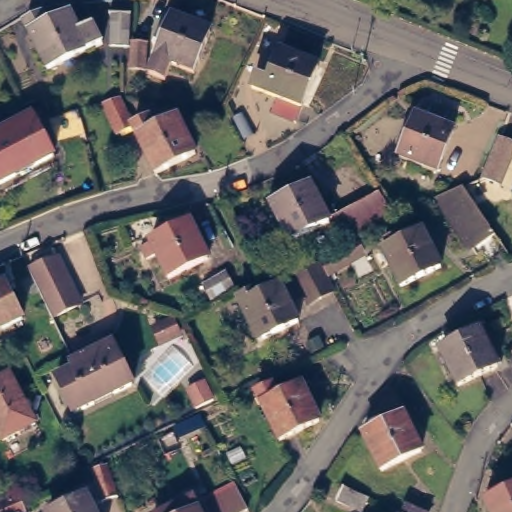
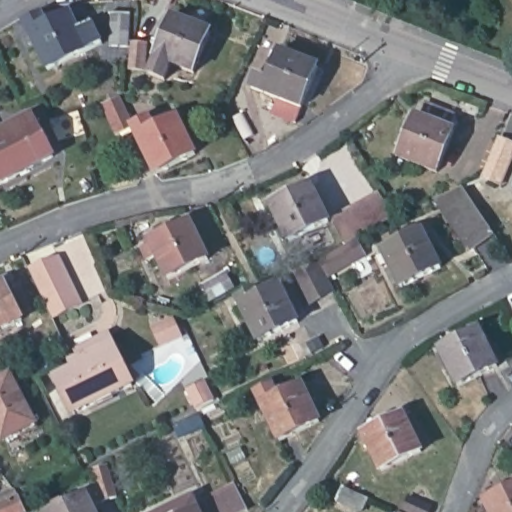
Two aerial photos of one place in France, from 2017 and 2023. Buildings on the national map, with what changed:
unchanged [(32,8),(37,17),(70,2),(77,18),(91,11),(101,30),(46,57),(25,12),(32,8)]
unchanged [(122,43),(102,41),(105,11),(125,12),(122,43)]
unchanged [(212,34),(197,71),(175,62),(167,81),(152,74),(162,52),(155,49),(170,16),(212,34)]
unchanged [(321,58),(298,114),(275,105),(280,91),(253,81),(257,70),(264,72),(277,41),(321,58)]
unchanged [(138,43),(136,67),(123,65),(125,42),(138,43)]
unchanged [(147,117),(163,109),(165,114),(189,102),(210,148),(172,167),(156,133),(154,134),(148,121),(132,128),(118,96),(135,88),(147,117)]
unchanged [(456,116),(451,129),(456,130),(441,172),(403,158),(418,115),(423,117),(427,106),(456,116)]
unchanged [(16,123),(18,127),(33,119),(54,154),(33,165),(31,163),(16,171),(16,175),(0,184),(0,132),(16,123)]
unchanged [(508,138),(493,179),(478,172),(492,132),(508,138)]
unchanged [(305,178),(323,214),(285,233),(267,197),(305,178)]
unchanged [(467,246),(432,193),(459,180),(491,230),(467,246)]
unchanged [(373,194),(384,214),(342,238),(331,217),(373,194)]
unchanged [(191,211),(211,248),(172,268),(158,241),(148,246),(143,235),(191,211)]
unchanged [(428,223),(447,259),(410,279),(391,243),(428,223)]
unchanged [(321,258),(355,241),(365,236),(372,250),(361,255),(328,272),(321,258)]
unchanged [(55,250),(78,296),(50,310),(26,263),(55,250)]
unchanged [(327,287),(303,299),(287,269),(311,256),(327,287)]
unchanged [(272,278),(291,315),(254,334),(235,297),(272,278)]
unchanged [(6,283),(23,317),(5,326),(2,324),(0,325),(0,286),(6,283)]
unchanged [(479,321),(496,358),(457,376),(439,339),(479,321)]
unchanged [(118,335),(142,384),(125,392),(125,390),(105,400),(106,402),(86,411),(69,376),(86,368),(83,361),(92,357),(88,349),(118,335)]
unchanged [(14,368),(41,416),(8,433),(0,418),(0,375),(14,368)]
unchanged [(277,387),(281,395),(306,383),(325,418),(286,438),(264,393),(277,387)]
unchanged [(407,406),(427,444),(388,463),(370,425),(407,406)]
unchanged [(110,464),(118,494),(105,498),(96,468),(110,464)]
unchanged [(220,512),(213,496),(243,480),(252,504),(237,512),(220,512)]
unchanged [(366,507),(340,496),(346,482),(372,493),(366,507)]
unchanged [(512,512),(498,512),(490,496),(512,486),(512,512)]
unchanged [(101,512),(46,512),(90,490),(101,512)]
unchanged [(20,512),(0,512),(0,503),(25,492),(30,508),(20,512)]
unchanged [(197,512),(150,512),(149,510),(188,492),(197,512)]
unchanged [(418,512),(392,512),(395,502),(418,512)]

